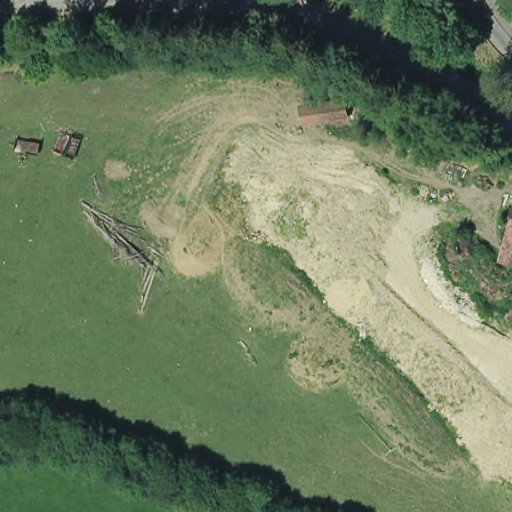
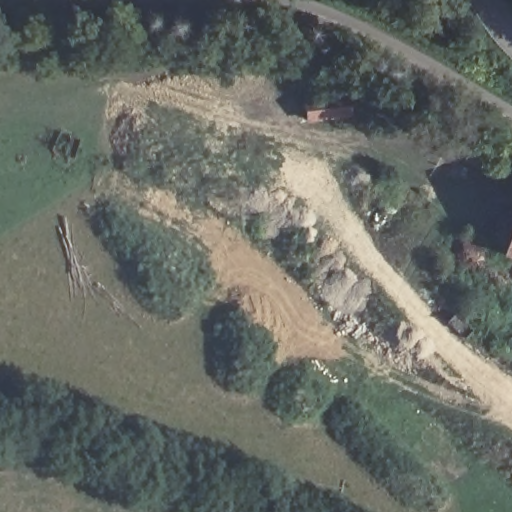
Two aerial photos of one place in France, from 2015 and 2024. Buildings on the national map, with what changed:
unchanged [(309,121),(308,106),(352,102),(354,117),(309,121)]
unchanged [(512,235),(512,238),(511,238),(512,235)]
unchanged [(511,238),(512,238),(512,260),(505,258),(511,238)]

